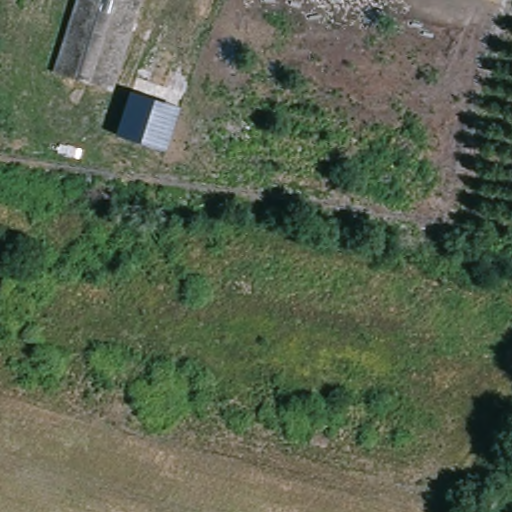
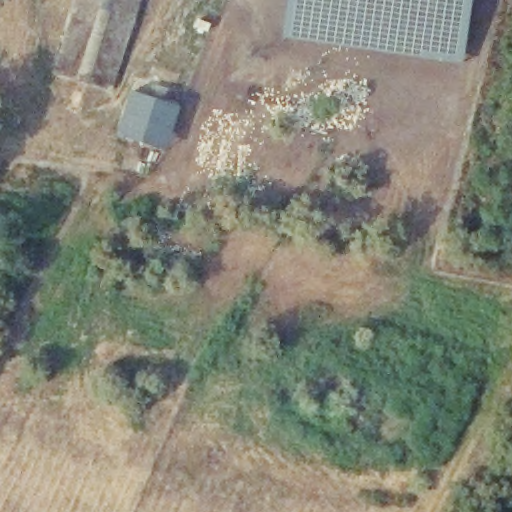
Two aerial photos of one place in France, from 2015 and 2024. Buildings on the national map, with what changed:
unchanged [(52,71),(78,0),(138,0),(106,90),(52,71)]
new [(289,0),(473,0),(463,64),(283,38),(289,0)]
unchanged [(162,152),(111,134),(130,77),(182,95),(162,152)]

